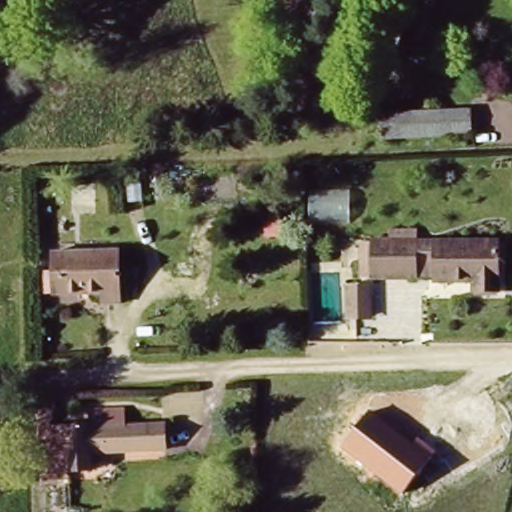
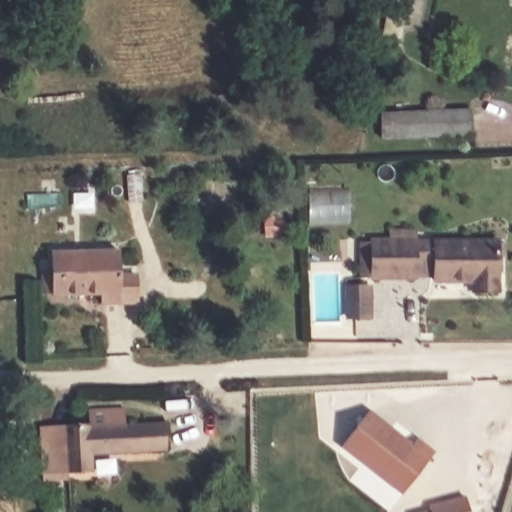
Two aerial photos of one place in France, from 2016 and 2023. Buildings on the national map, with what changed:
unchanged [(388,0),(415,0),(405,49),(383,44),(388,0)]
unchanged [(385,109),(474,105),(474,134),(385,137),(385,109)]
unchanged [(430,242),(496,240),(497,286),(474,286),(474,275),(431,276),(430,242)]
unchanged [(370,242),(411,242),(412,273),(370,274),(370,242)]
unchanged [(54,251),(117,250),(118,304),(97,303),(97,297),(55,297),(54,251)]
unchanged [(373,320),(347,322),(344,287),(370,287),(373,320)]
unchanged [(94,422),(95,430),(102,430),(102,410),(126,409),(127,430),(166,429),(167,464),(96,466),(96,475),(25,476),(25,425),(94,422)]
unchanged [(369,410),(414,445),(417,438),(435,451),(403,495),(340,447),(369,410)]
new [(427,505),(466,495),(470,512),(418,512),(428,510),(427,505)]

